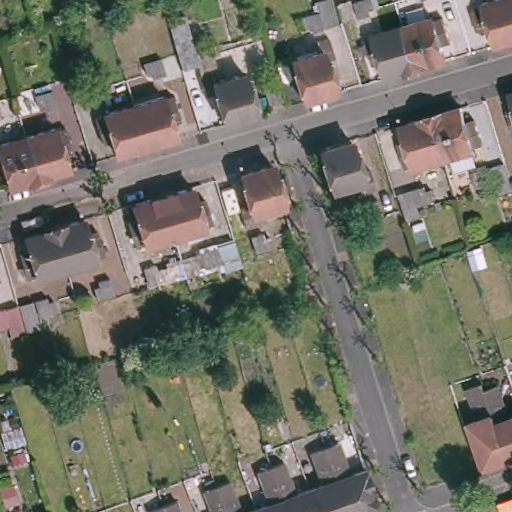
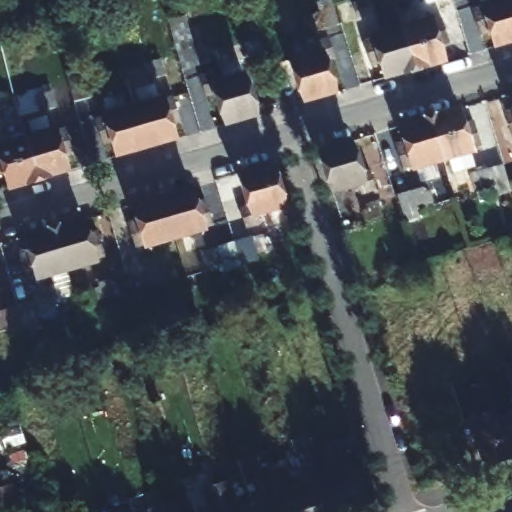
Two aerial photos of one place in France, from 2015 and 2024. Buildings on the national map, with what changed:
unchanged [(370,4),(371,9),(359,12),(355,0),(375,0),(375,1),(370,4)]
unchanged [(512,42),(494,47),(489,31),(477,34),(470,10),(481,7),(480,4),(492,0),(511,0),(512,2),(512,42)]
unchanged [(512,0),(512,2),(511,0),(512,0)]
unchanged [(315,7),(320,25),(308,27),(306,22),(301,24),(297,12),(315,7)]
unchanged [(217,49),(212,51),(214,57),(201,60),(185,64),(170,15),(187,11),(197,44),(214,38),(217,49)]
unchanged [(431,16),(442,13),(449,37),(438,41),(443,57),(428,61),(412,66),(400,22),(430,13),(431,16)]
unchanged [(384,74),(379,58),(370,61),(362,37),(372,34),(371,31),(400,22),(412,66),(384,74)]
unchanged [(313,44),(327,40),(332,57),(322,60),(334,93),(307,101),(302,102),(289,60),(316,52),(313,44)]
unchanged [(157,55),(162,72),(152,75),(150,69),(144,71),(140,60),(157,55)]
unchanged [(104,71),(107,82),(102,84),(103,90),(91,93),(86,76),(104,71)]
unchanged [(232,123),(227,125),(220,95),(211,98),(205,77),(221,72),(224,81),(246,74),(259,115),(232,123)]
unchanged [(267,101),(260,79),(273,74),(280,96),(267,101)]
unchanged [(50,87),(54,104),(43,107),(42,102),(35,104),(31,93),(50,87)]
unchanged [(165,96),(172,93),(180,117),(172,120),(175,134),(145,143),(132,101),(163,92),(165,96)]
unchanged [(117,152),(112,137),(102,140),(94,116),(104,112),(104,110),(132,101),(145,143),(117,152)]
unchanged [(439,155),(428,117),(445,112),(459,108),(463,124),(472,122),(480,145),(470,148),(471,151),(440,161),(439,155)]
unchanged [(408,166),(397,169),(391,145),(402,142),(398,126),(428,117),(439,155),(440,161),(410,170),(408,166)]
unchanged [(29,137),(57,129),(59,133),(69,130),(77,154),(66,158),(70,172),(55,176),(42,180),(29,137)]
unchanged [(354,165),(362,163),(367,182),(354,187),(350,175),(325,182),(312,140),(344,131),(354,165)]
unchanged [(12,189),(8,174),(0,177),(0,150),(0,148),(0,146),(29,137),(42,180),(12,189)]
unchanged [(274,154),(287,199),(260,207),(264,216),(249,221),(242,201),(253,197),(244,163),(274,154)]
unchanged [(472,172),(470,167),(482,163),(487,180),(470,185),(467,174),(472,172)]
unchanged [(420,182),(422,187),(429,185),(432,197),(415,202),(410,185),(420,182)]
unchanged [(171,225),(163,196),(192,187),(197,205),(207,202),(215,226),(204,230),(205,232),(176,241),(171,225)]
unchanged [(357,201),(355,196),(367,192),(372,209),(355,214),(352,202),(357,201)]
unchanged [(144,246),(135,247),(127,225),(138,221),(133,205),(163,196),(171,225),(176,241),(145,250),(144,246)]
unchanged [(89,231),(99,228),(105,252),(95,256),(95,259),(67,267),(55,222),(69,219),(84,214),(89,231)]
unchanged [(55,222),(67,267),(40,275),(38,272),(27,275),(20,251),(30,247),(25,232),(55,222)]
unchanged [(267,225),(269,231),(274,230),(278,241),(261,246),(255,227),(267,225)]
unchanged [(205,256),(202,249),(213,246),(217,262),(201,267),(198,257),(205,256)]
unchanged [(152,263),(154,270),(160,268),(164,279),(145,285),(140,267),(152,263)]
unchanged [(94,287),(92,281),(104,277),(108,295),(91,300),(87,290),(94,287)]
unchanged [(299,277),(304,290),(275,297),(270,286),(299,277)]
unchanged [(44,295),(46,302),(51,300),(55,310),(38,315),(32,298),(44,295)]
unchanged [(2,326),(0,326),(0,320),(2,326)]
unchanged [(482,387),(507,455),(485,462),(470,417),(475,416),(463,384),(480,378),(482,385),(482,387)]
unchanged [(507,412),(512,411),(512,453),(507,455),(482,387),(482,385),(495,381),(507,412)]
unchanged [(344,511),(342,503),(332,476),(337,473),(327,447),(325,442),(335,438),(346,471),(362,466),(369,492),(364,503),(346,510),(344,511)]
unchanged [(327,447),(337,473),(332,476),(342,503),(344,511),(340,512),(313,512),(305,487),(305,486),(310,484),(320,481),(310,448),(320,444),(325,442),(327,447)]
unchanged [(279,496),(280,496),(284,493),(274,461),(282,457),(292,491),(305,487),(313,512),(284,512),(279,496)]
unchanged [(284,493),(280,496),(279,496),(284,512),(255,512),(252,505),(257,502),(265,500),(256,467),(274,461),(284,493)]
unchanged [(230,512),(221,483),(218,477),(228,473),(239,508),(252,505),(255,512),(229,512),(230,512)]
unchanged [(221,483),(230,512),(229,512),(210,512),(202,483),(218,477),(221,483)]
unchanged [(175,493),(181,512),(170,512),(165,497),(175,493)]
unchanged [(170,512),(150,512),(147,504),(165,497),(170,512)]

